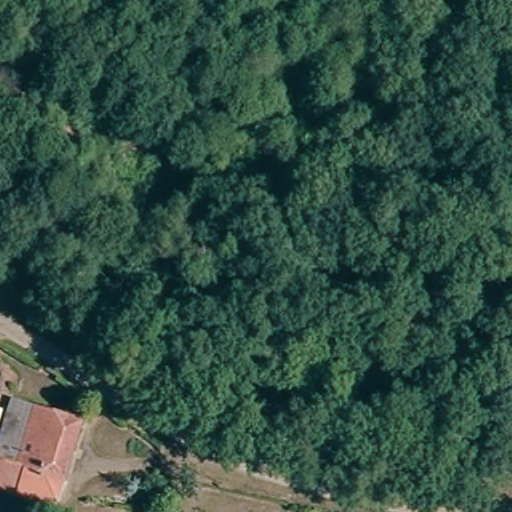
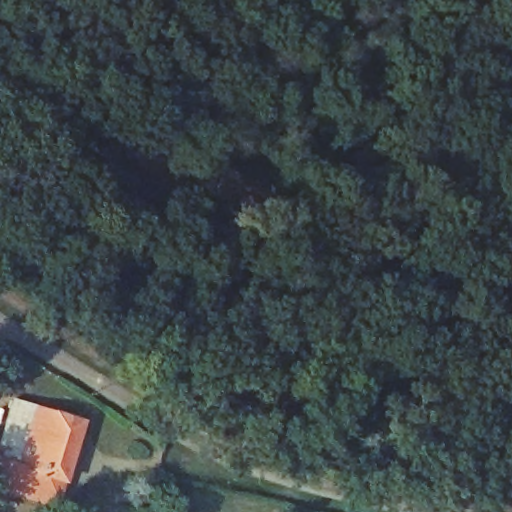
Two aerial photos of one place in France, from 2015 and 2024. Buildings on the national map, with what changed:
unchanged [(71,410),(60,475),(19,468),(10,467),(8,488),(0,487),(0,404),(1,398),(71,410)]
unchanged [(56,494),(48,492),(47,498),(14,494),(19,468),(60,475),(56,494)]

